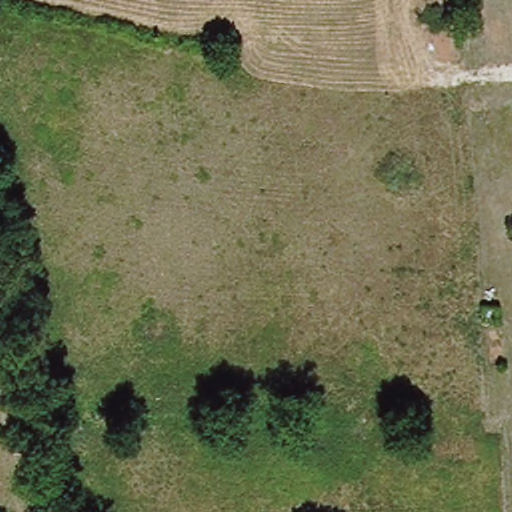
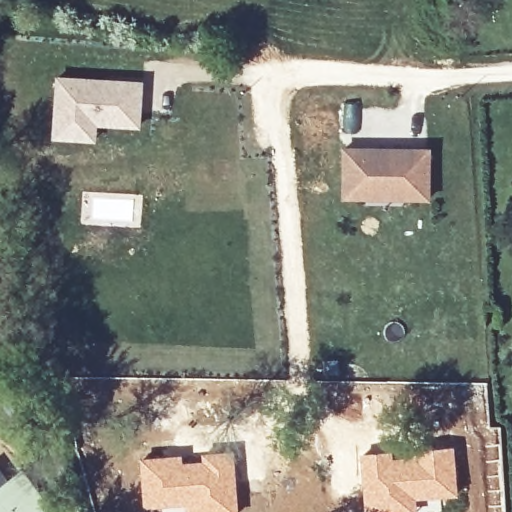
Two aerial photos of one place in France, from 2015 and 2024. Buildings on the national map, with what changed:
new [(53,138),(54,76),(141,81),(139,127),(95,126),(94,141),(53,138)]
new [(431,199),(340,200),(340,147),(430,146),(431,199)]
new [(392,455),(413,453),(413,448),(454,445),(458,495),(416,499),(417,512),(364,512),(357,453),(391,449),(392,455)]
new [(183,460),(201,458),(200,453),(234,449),(239,512),(162,512),(161,506),(143,508),(139,457),(182,454),(183,460)]
new [(50,503),(40,512),(0,512),(0,490),(12,479),(24,471),(50,503)]

